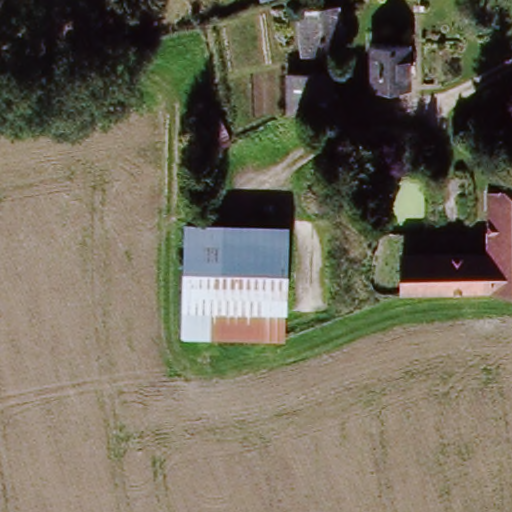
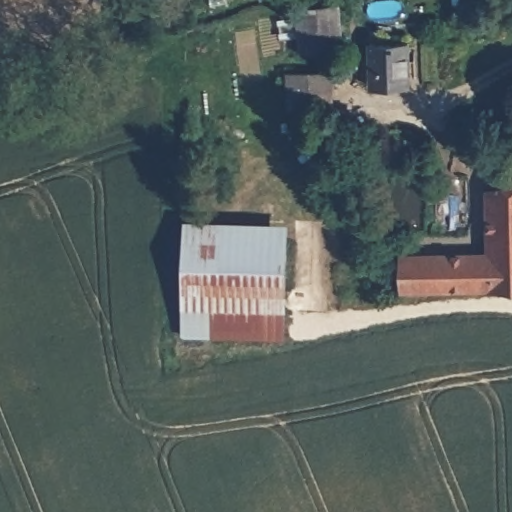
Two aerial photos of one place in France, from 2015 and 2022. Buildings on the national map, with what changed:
unchanged [(345,48),(305,54),(299,7),(340,1),(345,48)]
unchanged [(374,85),(369,47),(404,42),(409,80),(374,85)]
unchanged [(336,105),(292,111),(287,75),(332,70),(336,105)]
unchanged [(488,253),(485,192),(512,191),(512,289),(400,294),(400,257),(488,253)]
unchanged [(181,241),(285,234),(289,285),(260,286),(185,292),(181,241)]
unchanged [(263,333),(187,338),(185,292),(260,286),(263,333)]

